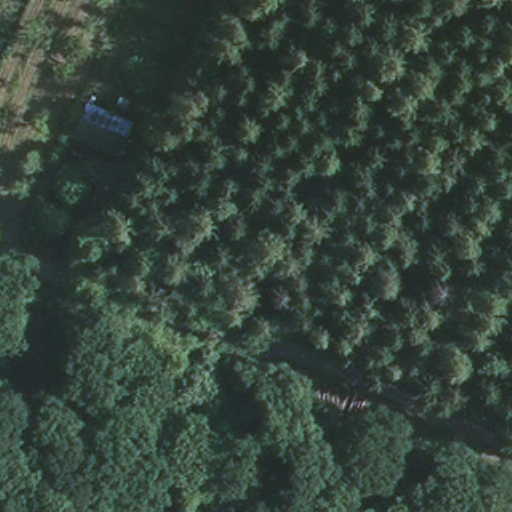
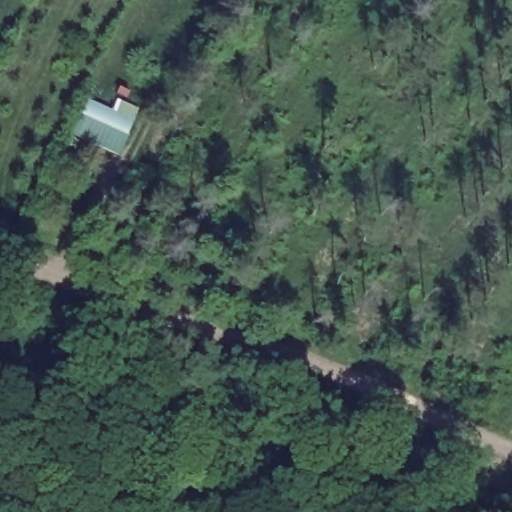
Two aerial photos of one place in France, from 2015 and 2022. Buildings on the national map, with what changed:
unchanged [(145,121),(132,152),(67,133),(85,94),(145,121)]

